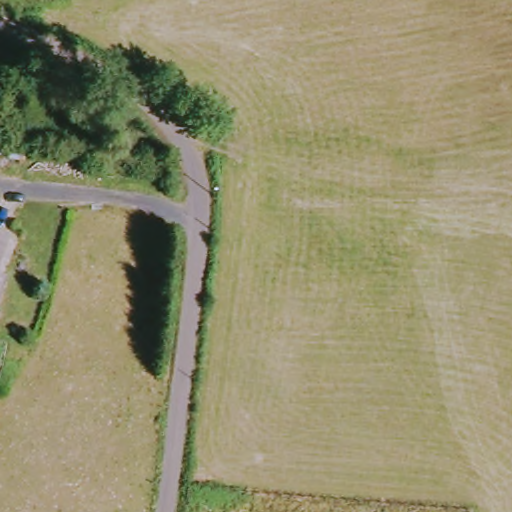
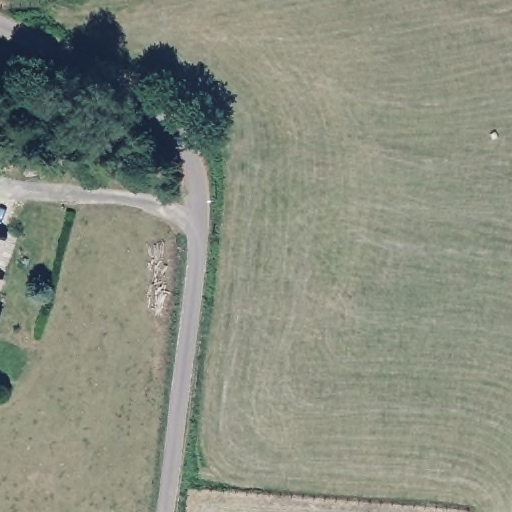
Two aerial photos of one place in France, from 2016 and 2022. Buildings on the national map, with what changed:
unchanged [(14,238),(0,270),(0,233),(14,238)]
unchanged [(0,296),(0,275),(8,277),(0,296)]

